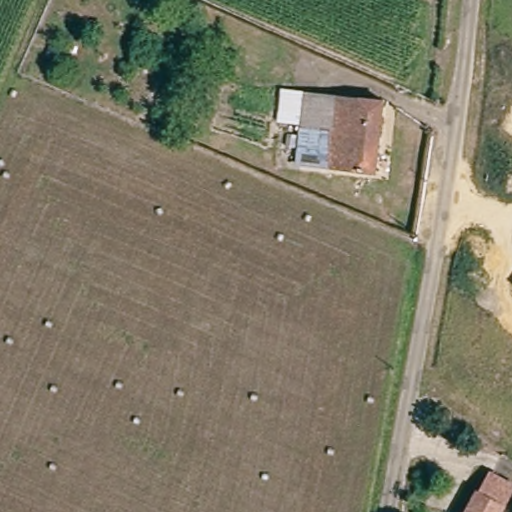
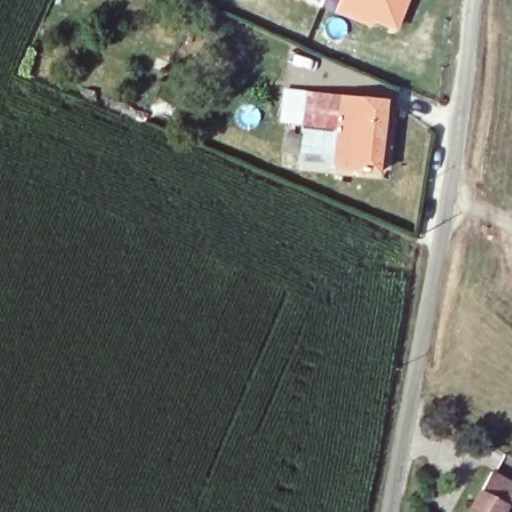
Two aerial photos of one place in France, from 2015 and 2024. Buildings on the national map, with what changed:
new [(302,0),(306,0),(306,1),(302,0)]
new [(332,12),(337,0),(409,0),(397,34),(332,12)]
unchanged [(331,169),(298,166),(305,92),(341,95),(383,100),(376,171),(331,169)]
unchanged [(512,487),(512,499),(502,512),(466,512),(495,474),(512,487)]

